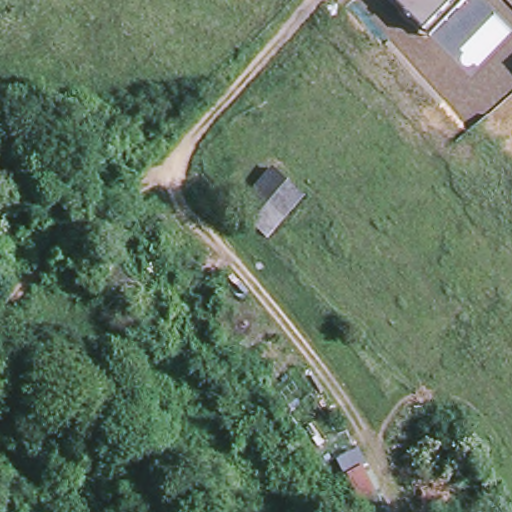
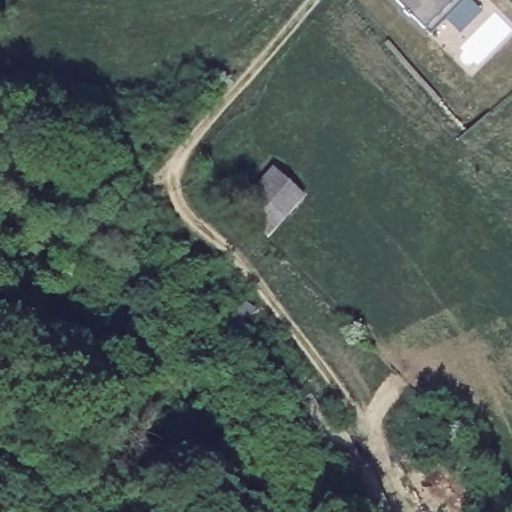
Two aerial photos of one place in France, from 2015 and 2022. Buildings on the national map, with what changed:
unchanged [(425,26),(410,11),(408,12),(403,7),(405,6),(399,0),(462,0),(445,16),(430,31),(425,26)]
unchanged [(272,167),(299,196),(258,232),(232,202),(272,167)]
unchanged [(368,512),(350,475),(366,467),(387,512),(368,512)]

